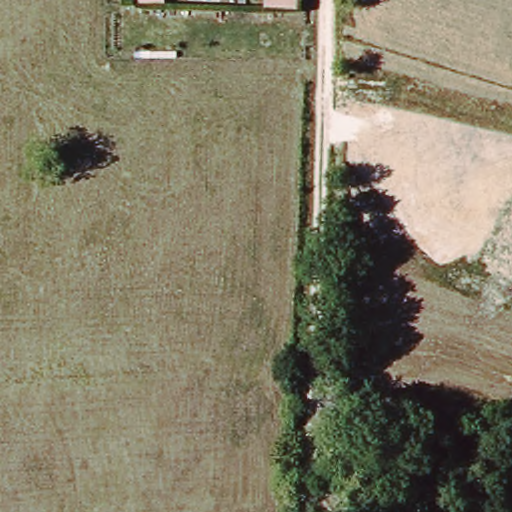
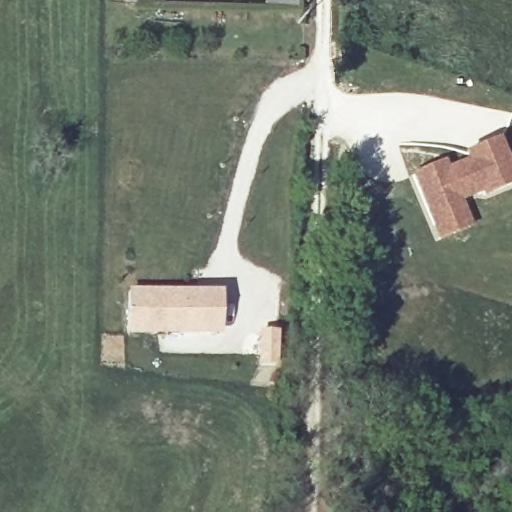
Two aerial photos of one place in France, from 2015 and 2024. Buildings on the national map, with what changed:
new [(512,171),(512,187),(483,200),(481,194),(462,203),(472,226),(438,242),(411,175),(445,161),(447,168),(466,160),(462,152),(500,139),(512,171)]
new [(126,288),(222,290),(221,334),(123,336),(126,288)]
new [(260,329),(278,330),(278,366),(257,366),(260,329)]

